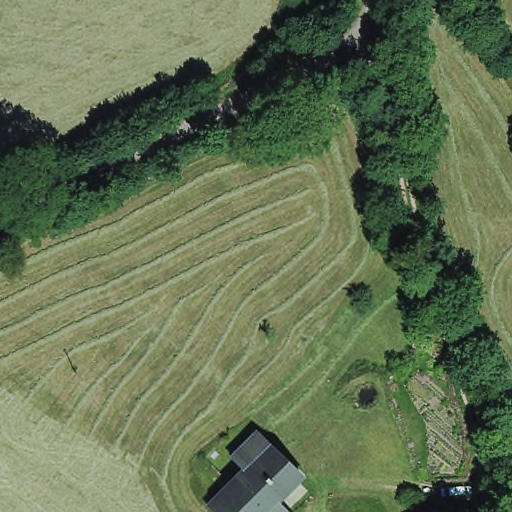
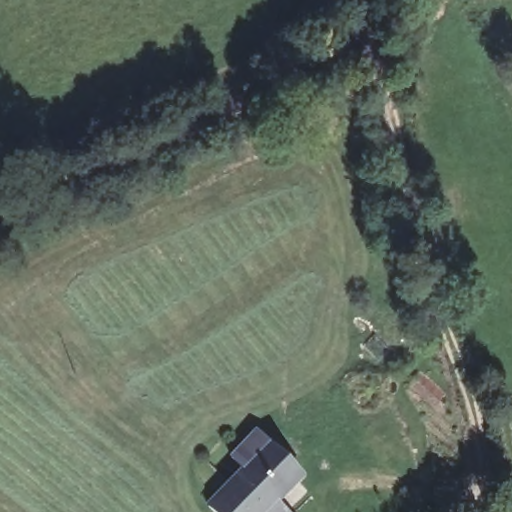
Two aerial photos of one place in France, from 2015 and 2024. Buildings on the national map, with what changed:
unchanged [(235,468),(260,442),(275,455),(307,486),(282,512),(220,512),(248,482),(235,468)]

